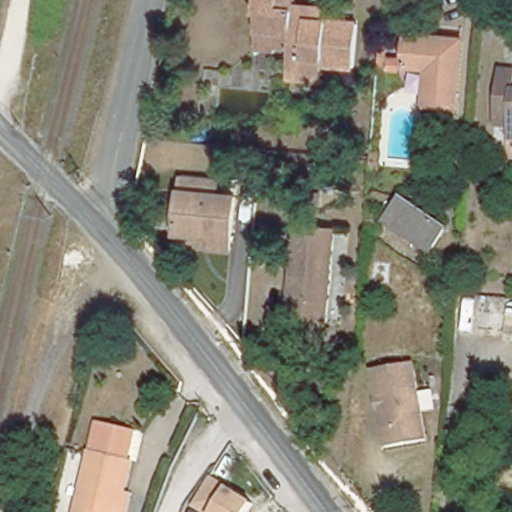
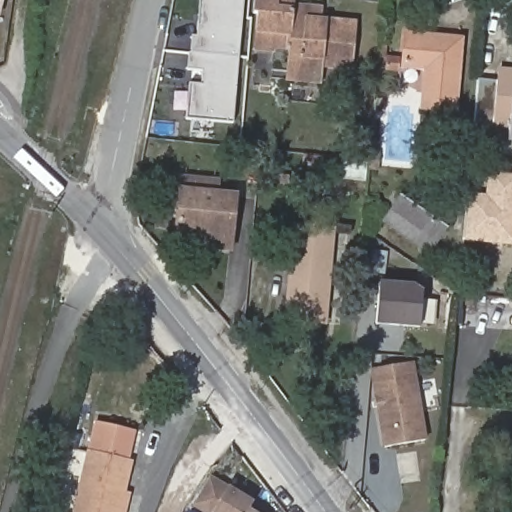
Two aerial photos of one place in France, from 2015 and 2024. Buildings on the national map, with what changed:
new [(0,0),(1,0),(0,7),(0,0)]
new [(188,117),(191,85),(201,86),(203,71),(189,70),(192,40),(197,40),(201,0),(245,0),(232,122),(188,117)]
unchanged [(283,58),(285,39),(265,37),(251,37),(253,19),(255,2),(250,1),(251,0),(316,0),(315,9),(349,13),(345,57),(318,55),(317,61),(316,72),(282,69),(283,58)]
unchanged [(430,101),(432,63),(410,61),(409,64),(396,62),(398,47),(410,49),(412,29),(466,34),(460,104),(430,101)]
unchanged [(510,141),(511,127),(493,126),(497,75),(512,76),(512,141),(510,141)]
new [(368,158),(369,152),(378,154),(377,169),(367,168),(367,177),(343,175),(345,156),(368,158)]
unchanged [(190,231),(180,230),(185,172),(221,176),(220,191),(240,194),(235,246),(215,244),(189,241),(190,231)]
new [(463,241),(466,194),(485,195),(488,173),(512,175),(512,245),(463,241)]
unchanged [(430,251),(386,221),(401,198),(445,229),(430,251)]
unchanged [(293,307),(301,217),(337,220),(330,311),(293,307)]
new [(381,282),(413,285),(425,292),(421,326),(377,322),(381,282)]
unchanged [(410,363),(422,442),(381,447),(370,369),(410,363)]
unchanged [(91,452),(97,422),(136,430),(130,460),(134,460),(127,491),(133,492),(129,512),(79,512),(91,452)]
unchanged [(249,512),(201,512),(194,507),(212,477),(229,486),(255,503),(249,512)]

